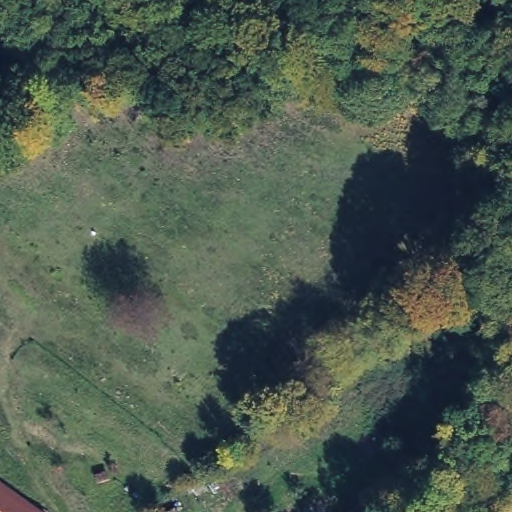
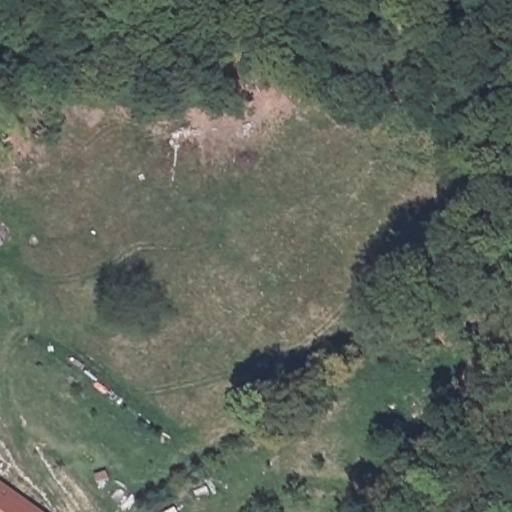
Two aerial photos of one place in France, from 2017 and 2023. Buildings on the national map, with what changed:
unchanged [(32,512),(0,512),(0,488),(32,512)]

